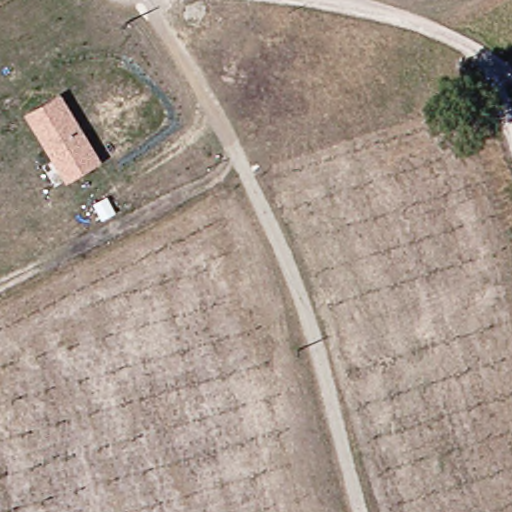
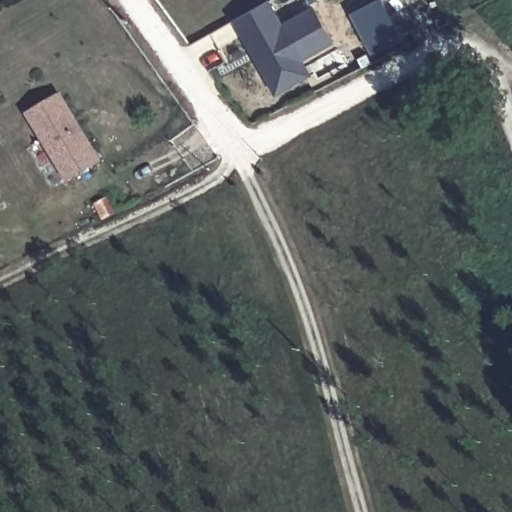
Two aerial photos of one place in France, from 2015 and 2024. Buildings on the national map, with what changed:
new [(282,22),(313,6),(333,44),(304,60),(312,74),(276,95),(232,20),(271,0),(282,22)]
new [(402,37),(372,54),(350,13),(374,0),(382,0),(402,37)]
unchanged [(67,181),(29,115),(59,97),(93,153),(99,162),(92,166),(67,181)]

